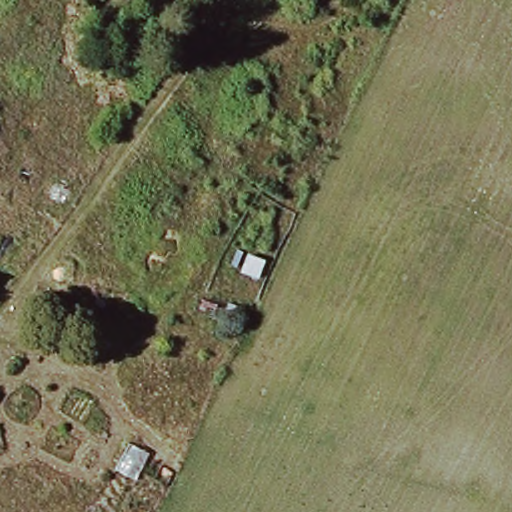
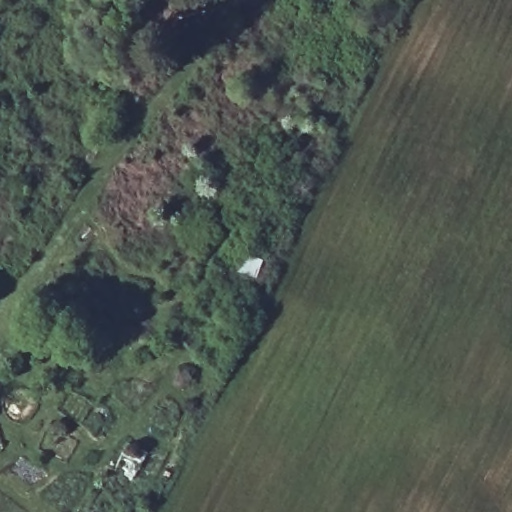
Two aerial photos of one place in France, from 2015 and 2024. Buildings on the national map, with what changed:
[]

